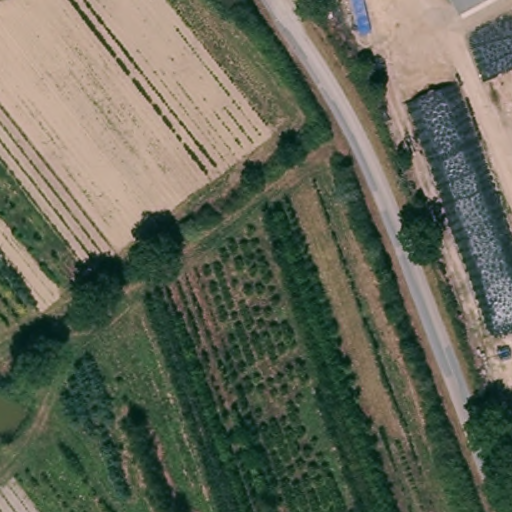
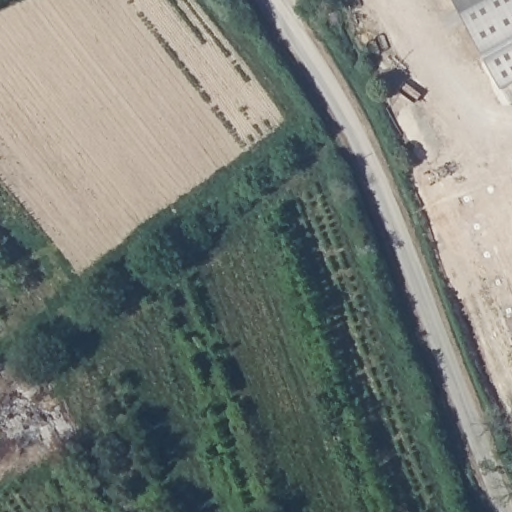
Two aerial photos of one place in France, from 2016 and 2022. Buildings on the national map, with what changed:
unchanged [(454,0),(484,0),(462,12),(454,0)]
new [(484,0),(512,0),(512,85),(502,90),(462,12),(484,0)]

